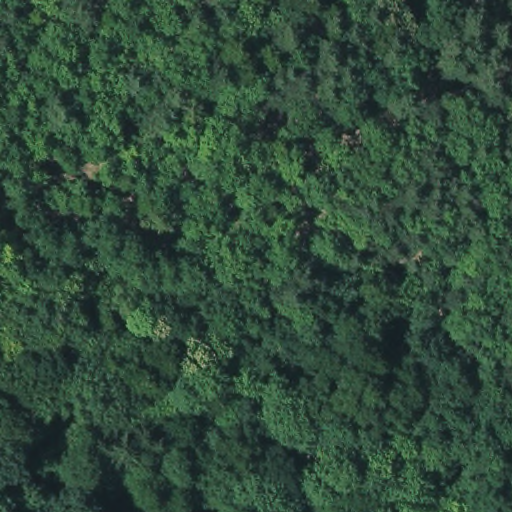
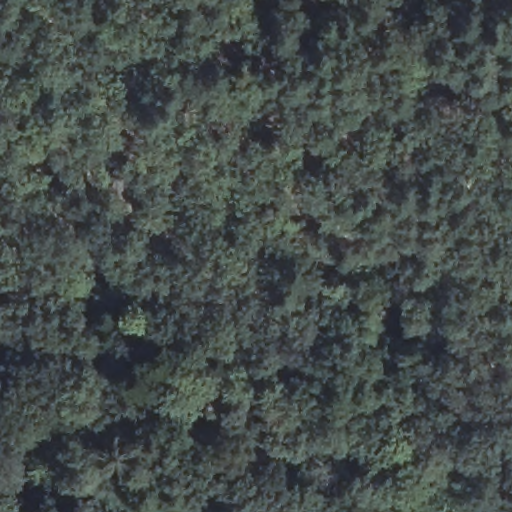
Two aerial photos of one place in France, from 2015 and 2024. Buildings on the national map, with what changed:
[]

